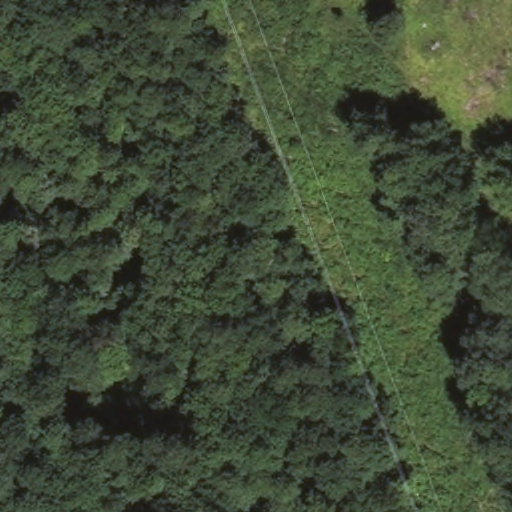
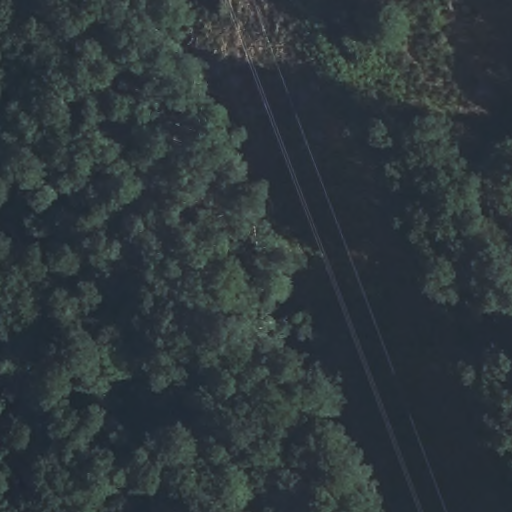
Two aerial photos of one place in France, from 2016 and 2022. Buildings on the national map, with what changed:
[]

